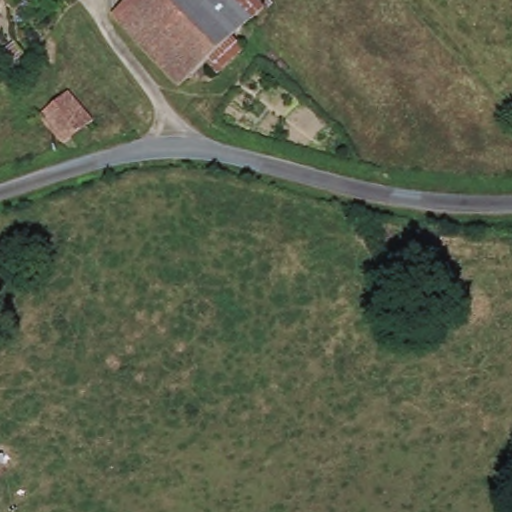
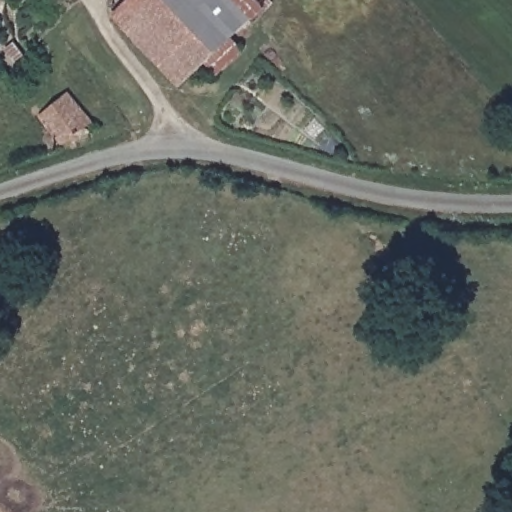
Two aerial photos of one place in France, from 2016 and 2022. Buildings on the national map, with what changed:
unchanged [(182,85),(117,15),(134,0),(253,0),(264,12),(182,85)]
unchanged [(96,120),(71,143),(45,114),(69,91),(96,120)]

